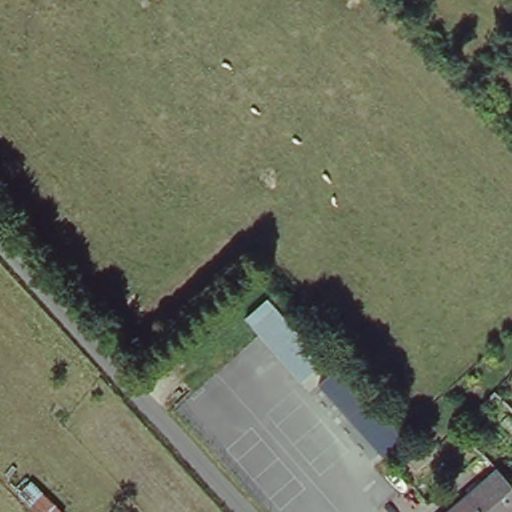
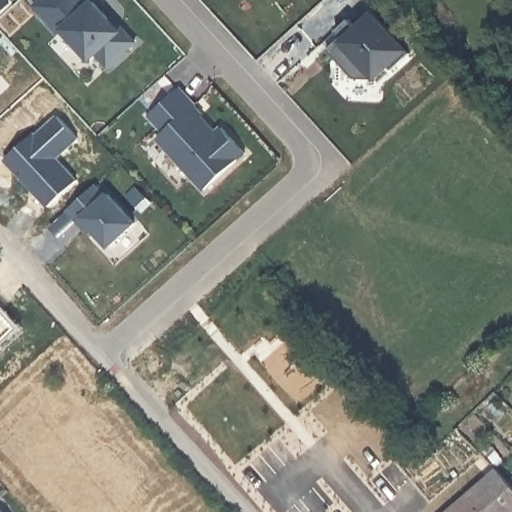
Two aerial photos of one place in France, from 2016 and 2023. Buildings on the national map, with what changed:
new [(95,57),(90,61),(64,32),(57,38),(31,8),(39,0),(88,0),(89,1),(90,0),(100,0),(136,41),(107,70),(95,57)]
new [(342,39),(335,32),(350,19),(355,26),(375,7),(411,47),(375,81),(353,79),(328,50),(342,39)]
new [(154,141),(162,134),(147,118),(180,88),(216,130),(221,126),(245,153),(201,192),(154,141)]
new [(97,185),(105,195),(110,190),(138,224),(110,248),(94,231),(87,238),(66,214),(97,185)]
new [(268,294),(325,358),(302,378),(245,315),(268,294)]
unchanged [(512,488),(512,512),(447,512),(496,470),(512,488)]
new [(1,512),(0,512),(0,511),(1,512)]

